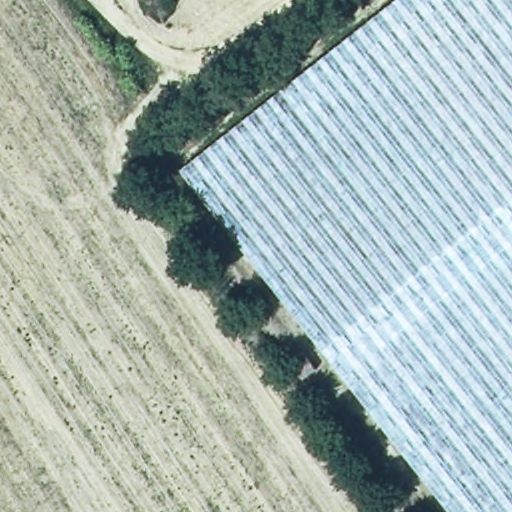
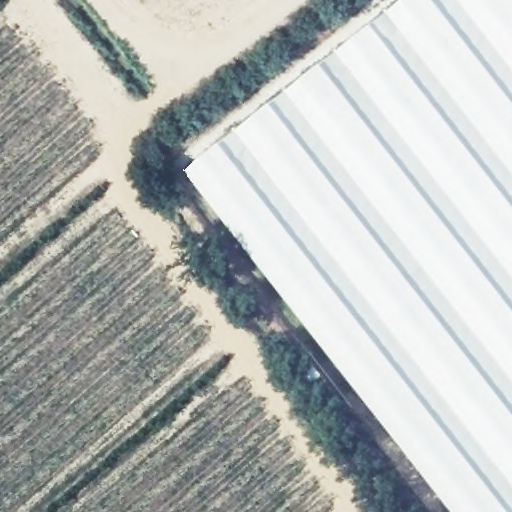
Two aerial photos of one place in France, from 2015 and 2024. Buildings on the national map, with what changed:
unchanged [(448,512),(178,168),(392,0),(512,0),(512,512),(448,512)]

